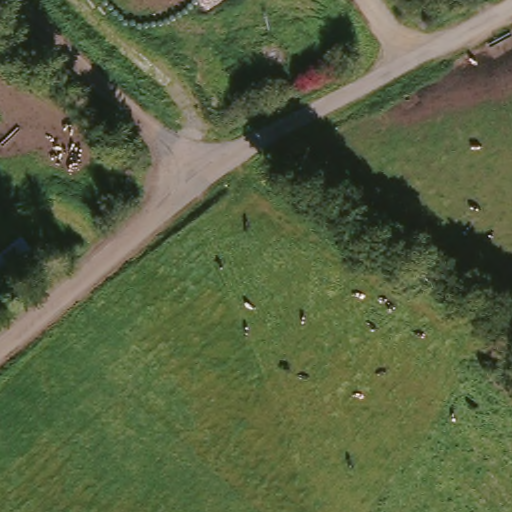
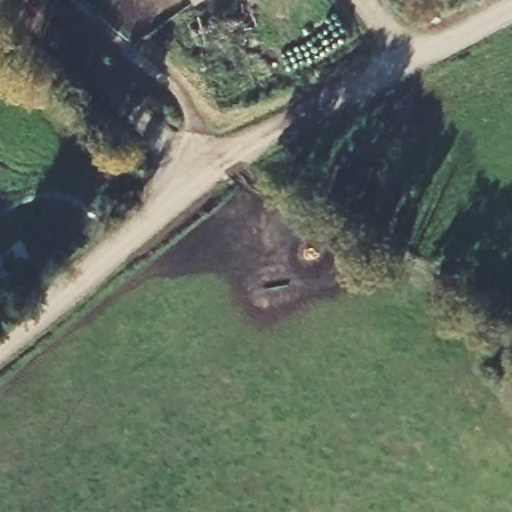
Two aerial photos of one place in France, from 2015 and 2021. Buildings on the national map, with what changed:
unchanged [(37,270),(6,296),(0,290),(0,259),(17,245),(37,270)]

